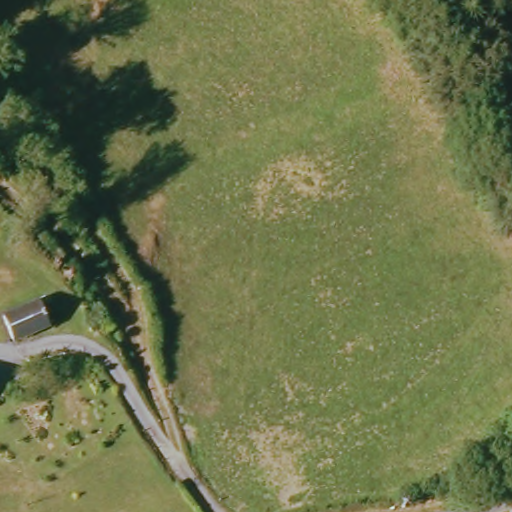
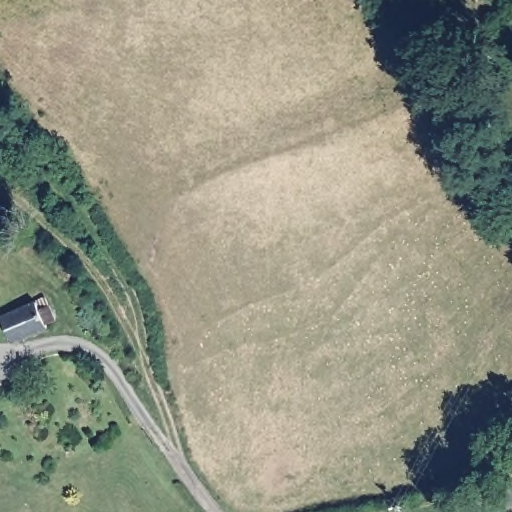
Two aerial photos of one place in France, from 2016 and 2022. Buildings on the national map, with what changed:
unchanged [(48,316),(55,314),(56,317),(51,322),(53,326),(20,342),(13,326),(45,310),(48,316)]

